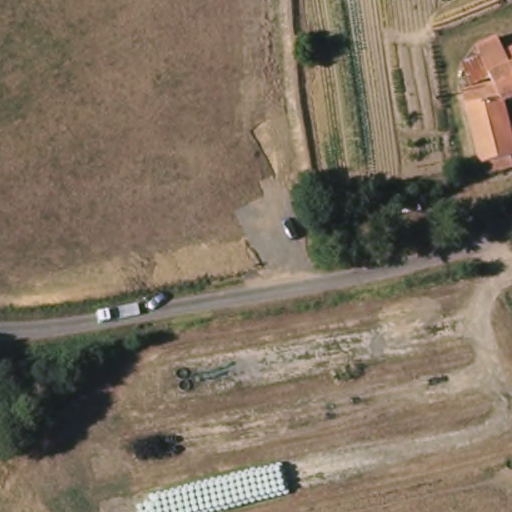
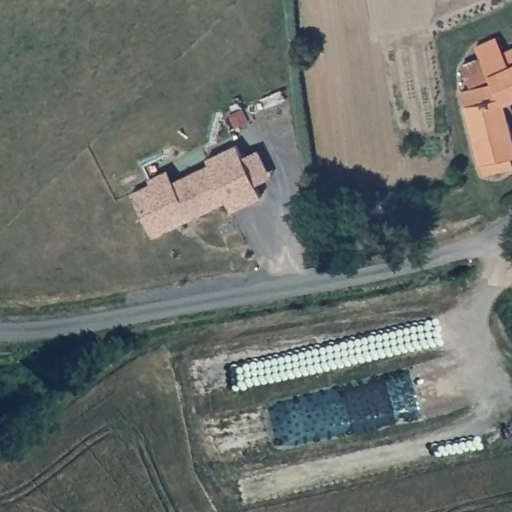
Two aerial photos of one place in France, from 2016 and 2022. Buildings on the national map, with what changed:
unchanged [(466,103),(464,87),(472,85),(463,63),(481,55),(476,46),(499,37),(507,52),(512,49),(512,100),(502,105),(512,139),(512,157),(508,158),(512,167),(512,168),(485,177),(482,165),(466,103)]
new [(121,190),(142,181),(147,192),(186,176),(184,170),(215,156),(221,169),(238,162),(251,192),(234,199),(240,212),(208,226),(204,216),(124,250),(103,204),(123,195),(121,190)]

